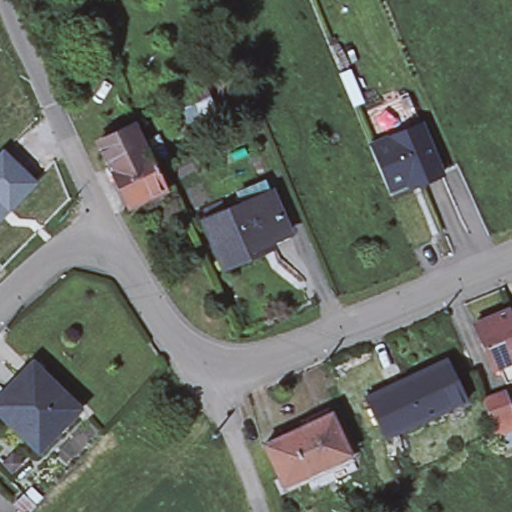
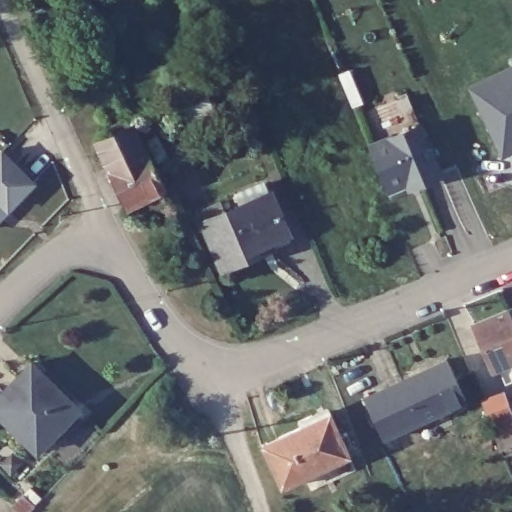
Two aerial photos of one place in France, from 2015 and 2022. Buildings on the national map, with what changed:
new [(468,84),(512,64),(512,153),(503,157),(468,84)]
unchanged [(204,81),(215,108),(188,120),(177,93),(204,81)]
unchanged [(148,148),(110,165),(98,141),(114,134),(110,125),(130,114),(135,124),(136,123),(148,148)]
unchanged [(368,140),(420,119),(440,169),(422,177),(390,191),(386,183),(368,140)]
unchanged [(128,206),(108,167),(110,165),(148,148),(150,147),(168,187),(128,206)]
unchanged [(38,182),(0,225),(0,153),(3,149),(38,182)]
unchanged [(263,247),(225,264),(206,219),(243,202),(240,195),(268,183),(271,190),(288,229),(290,235),(263,247)]
unchanged [(490,316),(512,307),(512,361),(510,362),(490,316)]
unchanged [(448,357),(467,397),(422,418),(403,377),(448,357)]
unchanged [(5,391),(35,360),(81,406),(64,424),(61,421),(37,447),(0,411),(0,406),(10,396),(5,391)]
unchanged [(497,393),(486,366),(500,361),(510,388),(512,387),(512,432),(510,428),(497,393)]
unchanged [(403,377),(422,418),(385,435),(365,395),(403,377)]
unchanged [(303,428),(300,422),(313,416),(317,422),(331,415),(350,456),(283,487),(264,445),(303,428)]
unchanged [(507,432),(508,436),(502,438),(501,434),(507,432)]

